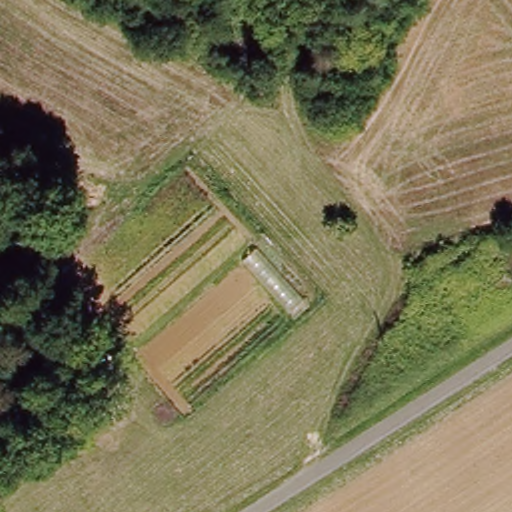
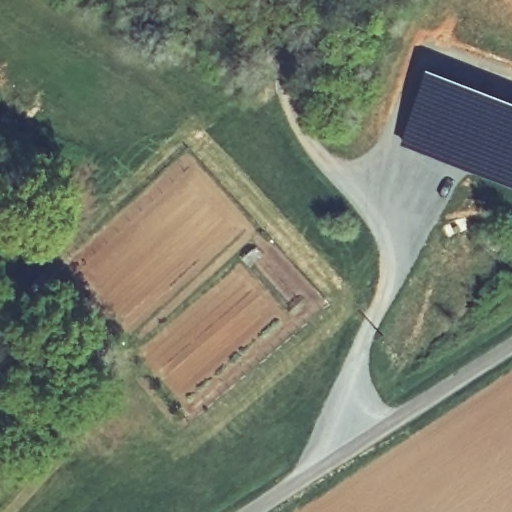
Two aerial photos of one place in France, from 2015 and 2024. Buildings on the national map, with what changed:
new [(512,97),(512,188),(488,179),(402,142),(430,66),(512,97)]

